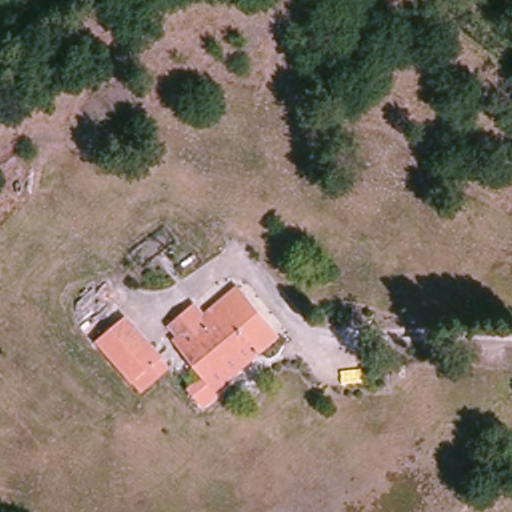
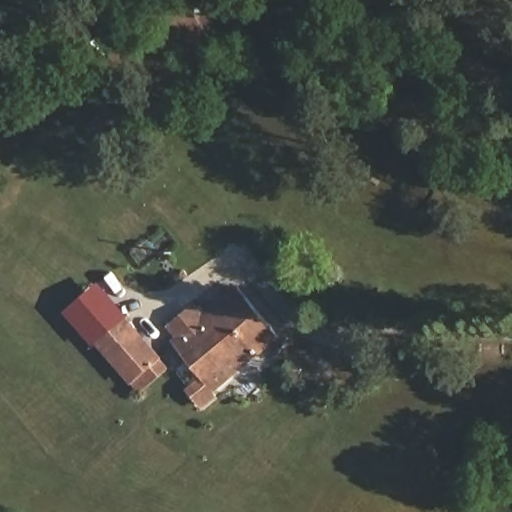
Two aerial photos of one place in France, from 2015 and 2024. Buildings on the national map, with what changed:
new [(95,340),(91,344),(63,312),(100,282),(126,316),(95,340)]
unchanged [(203,410),(188,387),(203,376),(173,339),(176,336),(170,327),(196,304),(204,314),(238,286),(279,336),(216,391),(219,397),(203,410)]
unchanged [(169,370),(151,385),(144,376),(132,386),(95,340),(126,316),(169,370)]

